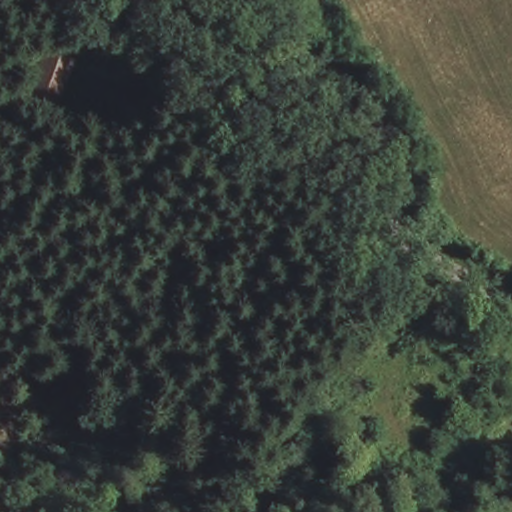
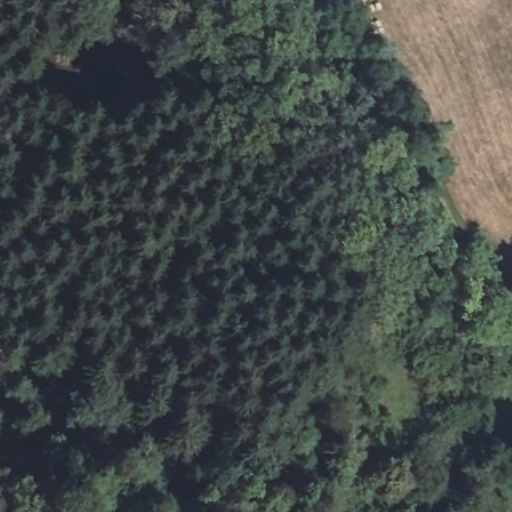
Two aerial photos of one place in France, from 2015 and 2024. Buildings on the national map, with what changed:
unchanged [(82,66),(70,97),(31,82),(41,52),(82,66)]

